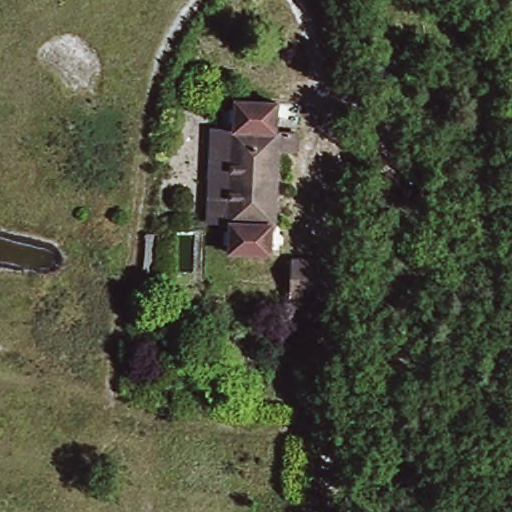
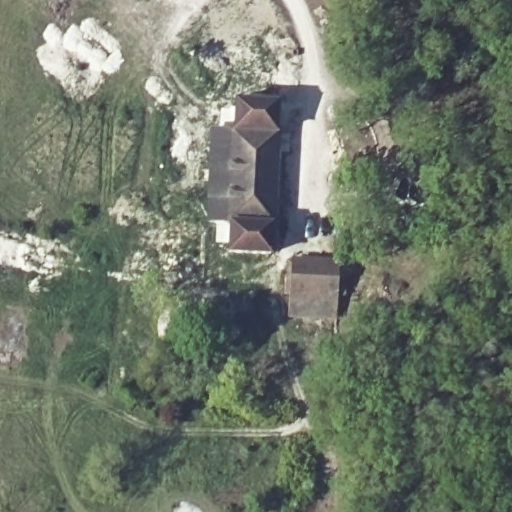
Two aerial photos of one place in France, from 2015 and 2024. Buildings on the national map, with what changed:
unchanged [(280,97),(280,128),(307,127),(307,147),(281,148),(282,248),(239,249),(238,221),(237,129),(236,98),(280,97)]
unchanged [(237,129),(238,221),(217,221),(216,129),(237,129)]
new [(290,256),(340,259),(336,322),(287,319),(290,256)]

